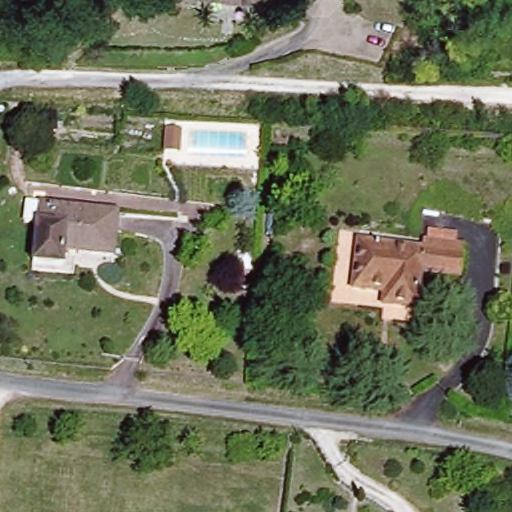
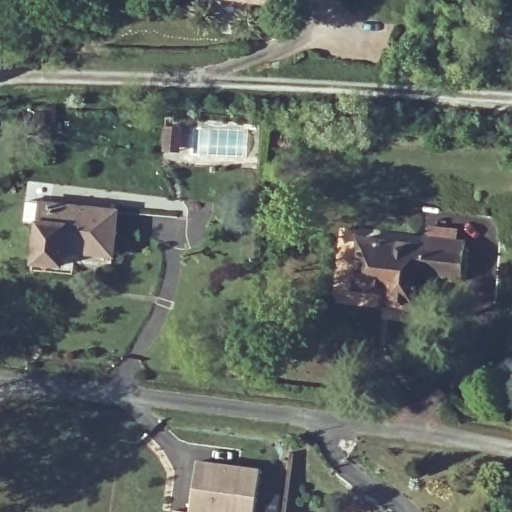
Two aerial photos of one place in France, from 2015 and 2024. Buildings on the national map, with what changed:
unchanged [(277,5),(238,0),(278,0),(277,5)]
unchanged [(172,144),(156,144),(157,117),(173,117),(172,144)]
unchanged [(113,251),(65,250),(64,262),(33,261),(36,225),(37,201),(51,201),(117,206),(113,251)]
unchanged [(471,240),(467,274),(422,270),(418,308),(388,305),(389,295),(352,292),(356,239),(422,245),(423,235),(471,240)]
new [(251,512),(193,512),(187,512),(192,461),(256,467),(251,512)]
new [(187,512),(172,512),(172,510),(187,512)]

